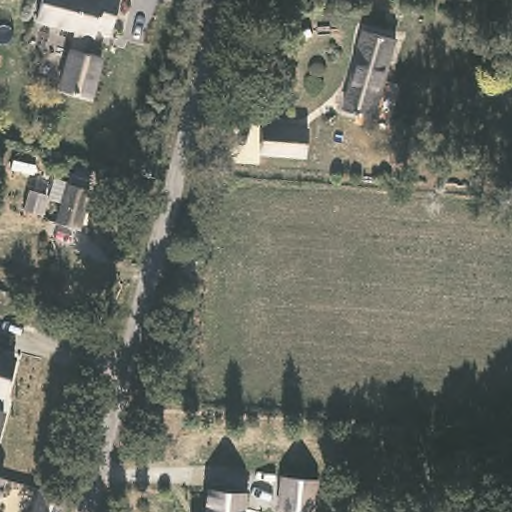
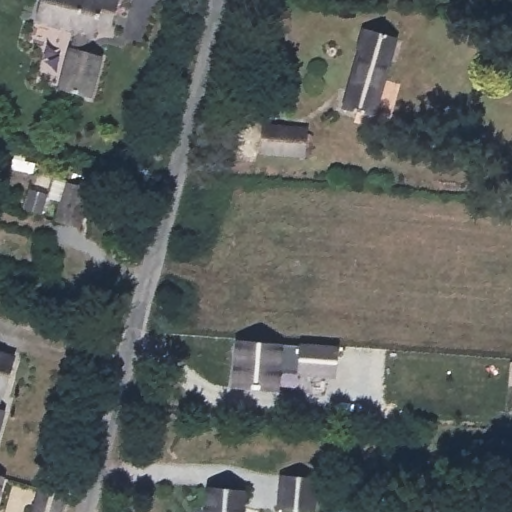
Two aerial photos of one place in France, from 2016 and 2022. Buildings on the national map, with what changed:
unchanged [(101,1),(116,4),(109,36),(95,33),(92,45),(88,44),(85,59),(100,63),(90,103),(90,104),(60,96),(60,95),(70,55),(72,55),(76,41),(72,40),(74,35),(35,25),(41,0),(77,0),(100,6),(101,1)]
unchanged [(393,42),(372,119),(342,111),(363,34),(393,42)]
unchanged [(305,132),(303,159),(257,156),(259,129),(305,132)]
unchanged [(84,189),(74,229),(51,223),(61,183),(84,189)]
new [(240,342),(338,348),(337,376),(278,373),(277,391),(236,388),(240,342)]
unchanged [(15,361),(3,398),(0,397),(0,356),(15,361)]
unchanged [(2,413),(0,421),(0,412),(2,413)]
unchanged [(282,476),(316,479),(313,512),(280,509),(282,476)]
unchanged [(7,482),(0,508),(0,479),(7,482)]
unchanged [(40,488),(66,495),(62,512),(33,512),(40,488)]
unchanged [(210,488),(245,491),(243,512),(207,512),(210,488)]

